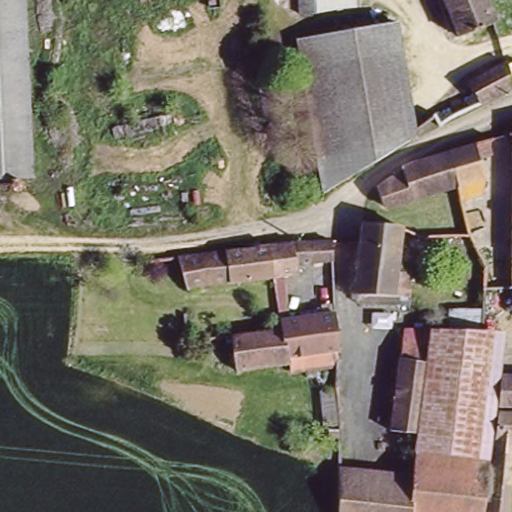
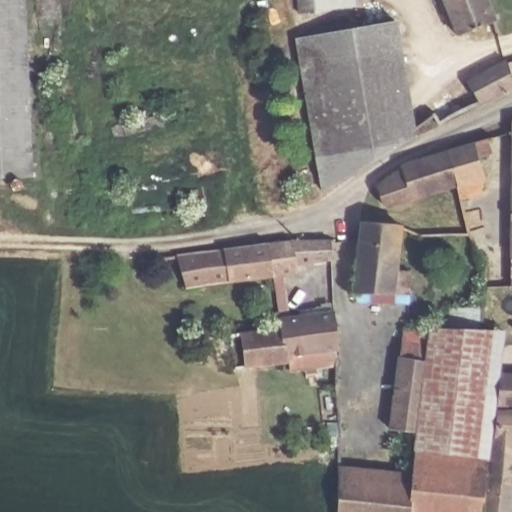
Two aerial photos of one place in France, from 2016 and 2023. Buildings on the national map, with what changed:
unchanged [(40,173),(0,174),(0,0),(29,0),(40,173)]
unchanged [(299,12),(298,0),(357,0),(358,7),(299,12)]
unchanged [(500,23),(464,36),(448,0),(490,0),(500,23)]
unchanged [(408,12),(411,39),(356,50),(351,24),(408,12)]
unchanged [(331,28),(351,24),(356,50),(357,53),(307,62),(302,34),(331,28)]
unchanged [(357,53),(405,45),(420,131),(416,133),(322,149),(307,62),(357,53)]
unchanged [(512,62),(512,80),(482,95),(473,76),(511,57),(512,62)]
unchanged [(482,141),(492,176),(488,191),(468,196),(466,185),(456,149),(482,141)]
unchanged [(408,170),(408,164),(417,161),(456,149),(466,185),(393,206),(385,182),(408,170)]
unchanged [(364,222),(399,224),(396,269),(411,270),(409,296),(357,291),(364,222)]
unchanged [(308,242),(329,240),(331,261),(310,262),(292,264),(293,273),(272,275),(269,276),(186,285),(176,257),(265,245),(290,243),(308,242)]
unchanged [(451,330),(450,266),(490,266),(481,332),(451,330)]
unchanged [(334,313),(336,335),(337,349),(286,357),(282,328),(281,322),(334,313)]
unchanged [(282,328),(286,357),(286,363),(237,369),(234,334),(282,328)]
unchanged [(419,432),(389,428),(402,328),(430,329),(419,432)]
unchanged [(451,330),(481,332),(507,333),(503,374),(500,407),(494,457),(418,449),(419,432),(430,329),(451,330)]
unchanged [(500,407),(503,374),(512,374),(512,407),(500,407)]
unchanged [(512,411),(512,512),(493,512),(503,411),(512,411)]
unchanged [(418,449),(494,457),(488,512),(416,512),(418,472),(418,449)]
unchanged [(418,472),(416,512),(344,512),(347,466),(418,472)]

